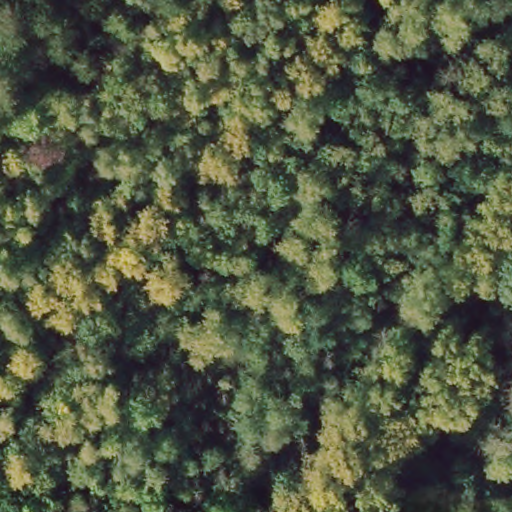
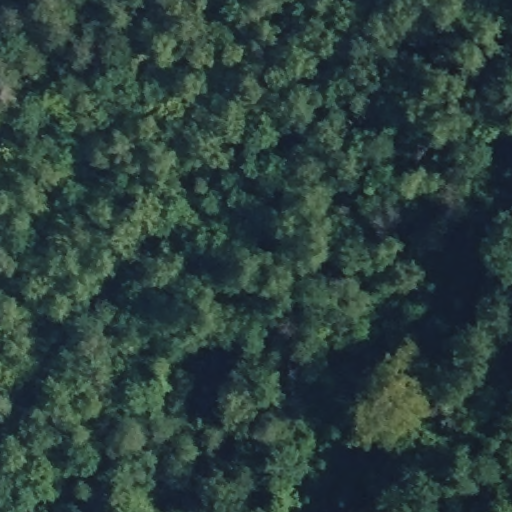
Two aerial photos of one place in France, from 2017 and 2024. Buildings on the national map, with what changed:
unchanged [(431,504),(426,512),(397,512),(408,492),(431,504)]

